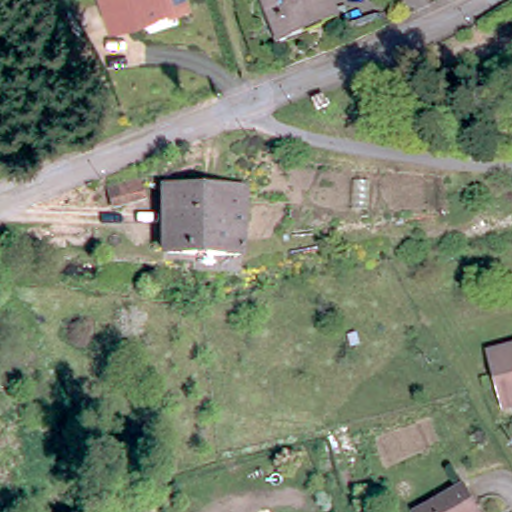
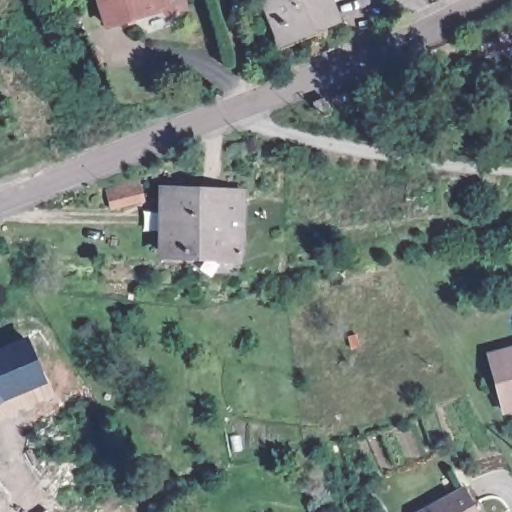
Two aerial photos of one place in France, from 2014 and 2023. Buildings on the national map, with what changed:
unchanged [(143,21),(123,34),(100,0),(130,0),(143,21)]
unchanged [(143,21),(130,0),(175,0),(143,21)]
unchanged [(282,41),(266,8),(281,0),(323,0),(331,18),(282,41)]
unchanged [(110,183),(140,176),(144,194),(114,200),(110,183)]
unchanged [(238,258),(160,255),(162,191),(241,195),(238,258)]
new [(27,338),(44,382),(3,397),(0,400),(0,350),(27,338)]
unchanged [(489,352),(512,347),(512,408),(505,410),(489,352)]
unchanged [(429,512),(468,488),(481,512),(429,512)]

